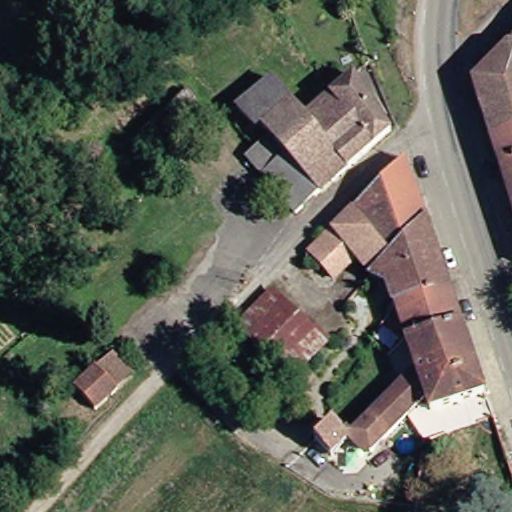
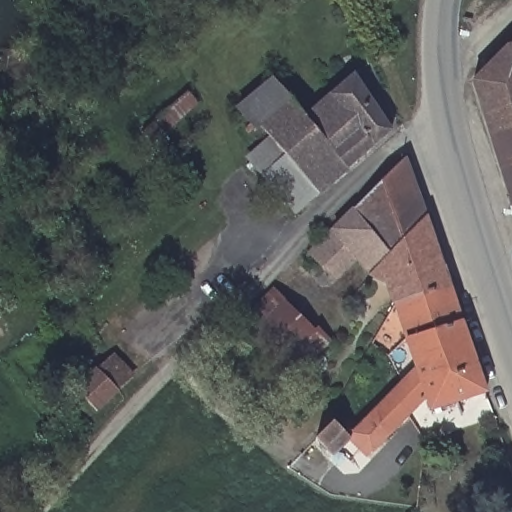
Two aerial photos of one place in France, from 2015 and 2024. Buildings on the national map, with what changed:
unchanged [(470,81),(508,43),(512,42),(512,214),(481,121),(470,81)]
unchanged [(259,134),(254,138),(231,111),(264,81),(302,120),(351,74),(385,133),(317,199),(282,160),(259,134)]
unchanged [(388,252),(352,206),(401,159),(446,287),(393,305),(381,289),(347,325),(332,312),(369,272),(388,252)]
unchanged [(296,219),(261,181),(282,160),(317,199),(296,219)]
unchanged [(318,264),(306,252),(321,237),(331,227),(352,206),(388,252),(369,272),(355,255),(332,278),(318,264)]
unchanged [(371,479),(363,471),(348,455),(360,442),(355,429),(415,366),(393,305),(446,287),(480,393),(428,411),(424,398),(387,437),(399,451),(371,479)]
unchanged [(268,292),(318,346),(280,381),(234,329),(268,292)]
unchanged [(76,389),(101,367),(115,355),(135,375),(121,388),(96,409),(76,389)]
unchanged [(335,419),(350,436),(334,452),(317,436),(335,419)]

